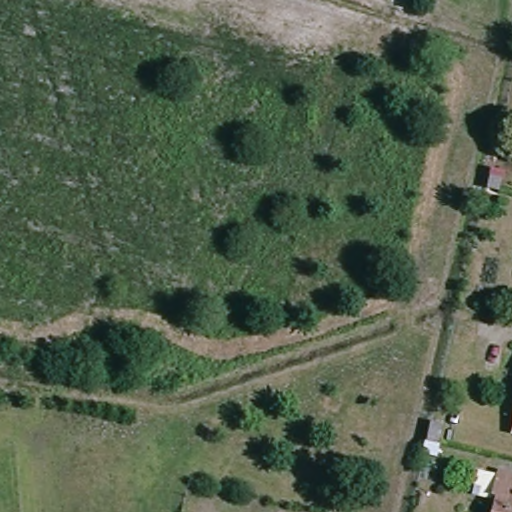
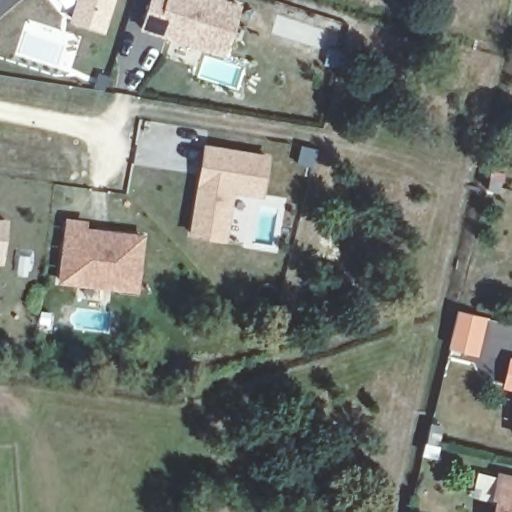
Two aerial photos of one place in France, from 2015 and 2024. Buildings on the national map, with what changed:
new [(69,21),(76,0),(115,0),(105,33),(69,21)]
new [(241,5),(225,56),(139,29),(149,0),(228,0),(241,5)]
new [(187,235),(204,144),(270,154),(263,197),(235,193),(226,243),(187,235)]
new [(88,218),(87,226),(145,232),(138,292),(57,283),(65,216),(88,218)]
new [(3,263),(0,262),(0,217),(9,218),(3,263)]
unchanged [(506,429),(512,406),(512,430),(506,429)]
unchanged [(490,512),(495,493),(488,490),(492,473),(512,477),(512,512),(490,512)]

